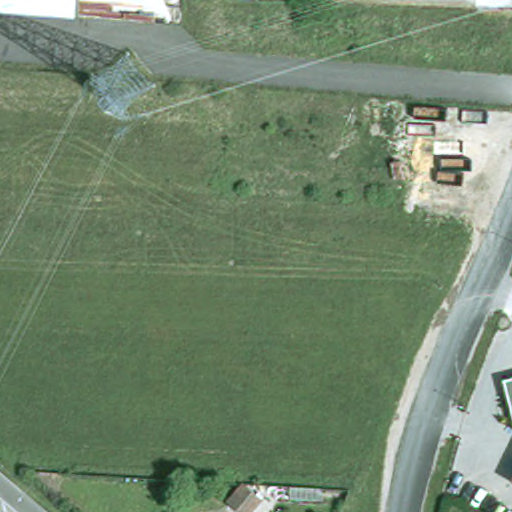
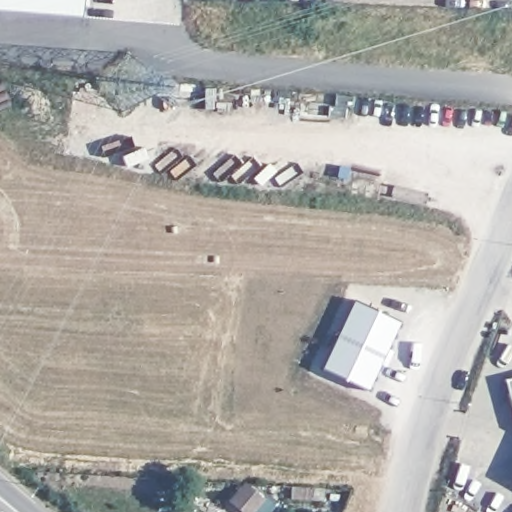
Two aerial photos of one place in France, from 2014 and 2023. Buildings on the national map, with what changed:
unchanged [(0,7),(0,0),(78,0),(78,12),(0,7)]
new [(368,390),(321,368),(353,300),(400,322),(368,390)]
unchanged [(503,399),(499,384),(512,380),(512,436),(511,435),(503,399)]
unchanged [(512,475),(512,488),(507,485),(512,475)]
unchanged [(322,485),(321,500),(291,497),(293,484),(322,485)]
unchanged [(229,500),(243,485),(260,500),(249,512),(243,512),(229,500)]

